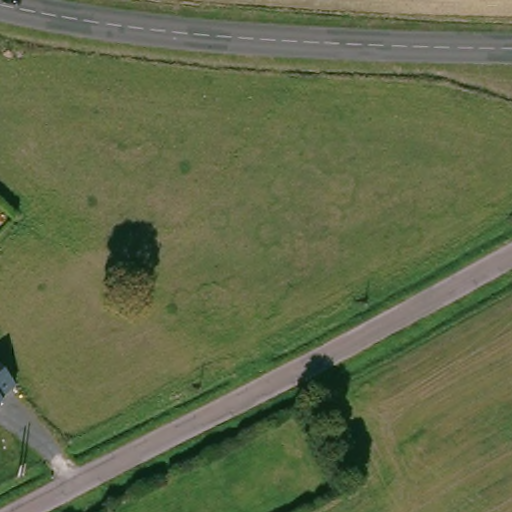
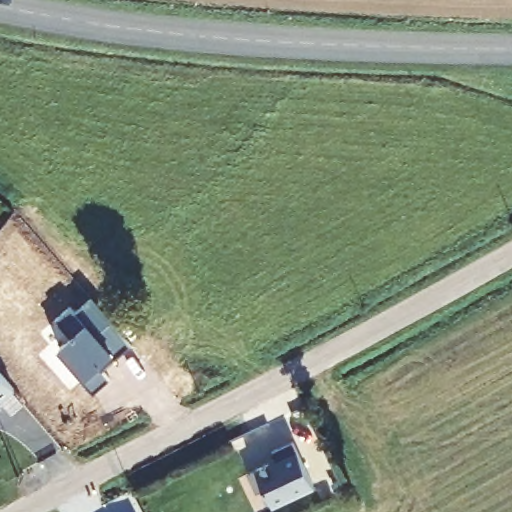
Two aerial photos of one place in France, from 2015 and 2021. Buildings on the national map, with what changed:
new [(72,312),(77,317),(92,304),(134,350),(119,365),(115,361),(103,372),(114,384),(98,399),(86,386),(88,383),(62,355),(74,343),(58,326),(72,312)]
unchanged [(16,388),(1,402),(3,405),(0,408),(0,370),(16,388)]
new [(313,487),(272,507),(263,490),(257,493),(247,473),(276,459),(273,451),(292,442),(313,487)]

